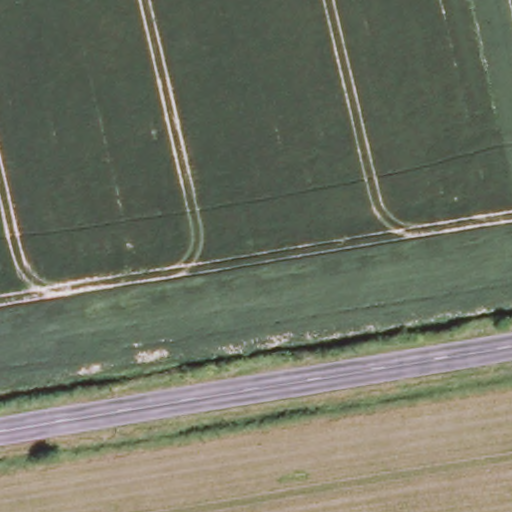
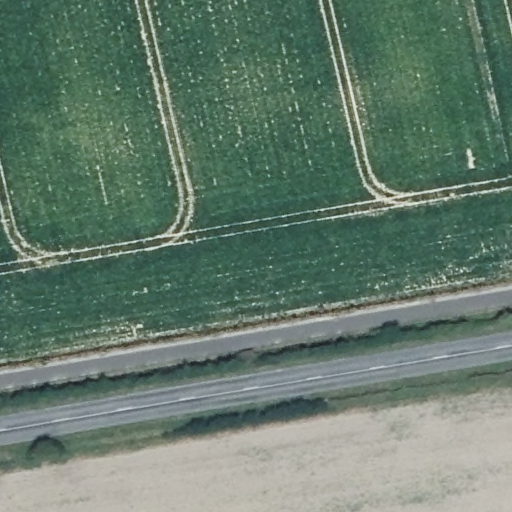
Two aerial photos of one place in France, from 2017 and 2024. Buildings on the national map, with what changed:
[]

